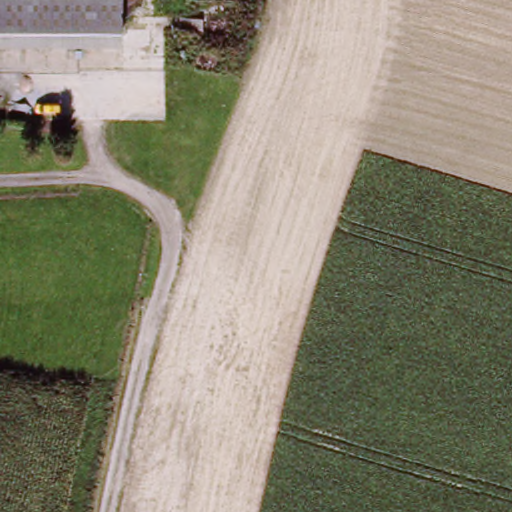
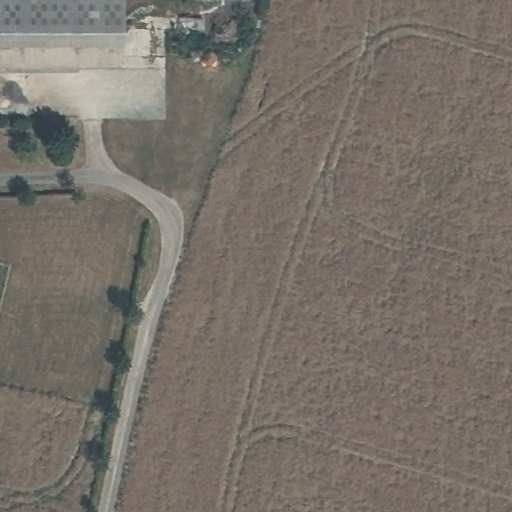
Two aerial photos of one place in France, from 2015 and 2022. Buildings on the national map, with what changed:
unchanged [(127,45),(0,44),(0,0),(88,0),(125,0),(127,45)]

